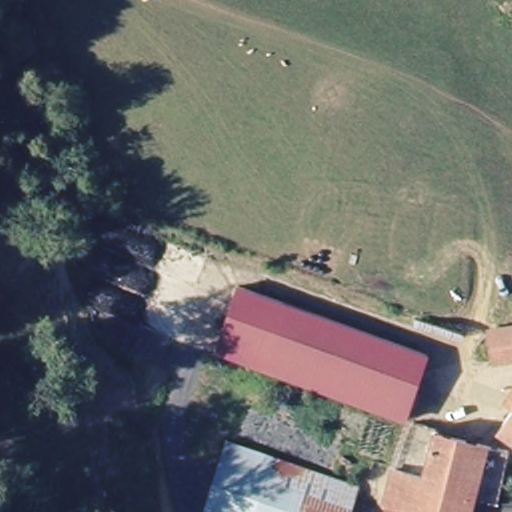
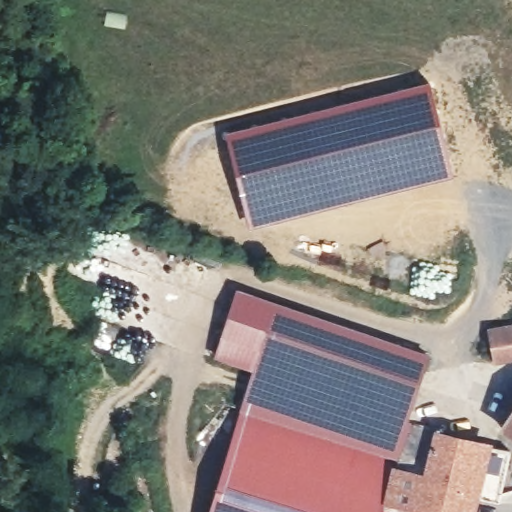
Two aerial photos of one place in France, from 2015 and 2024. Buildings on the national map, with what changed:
new [(429,81),(453,174),(250,226),(224,133),(429,81)]
unchanged [(235,290),(276,302),(259,363),(260,370),(254,367),(216,356),(235,290)]
unchanged [(260,370),(259,363),(276,302),(422,349),(401,415),(260,370)]
unchanged [(512,315),(512,347),(494,349),(492,316),(512,315)]
new [(254,367),(260,370),(401,415),(376,512),(209,512),(254,367)]
unchanged [(429,378),(420,418),(438,422),(436,430),(512,448),(512,465),(508,463),(494,512),(466,512),(385,491),(417,375),(429,378)]
unchanged [(512,409),(512,419),(508,415),(512,409)]
demolished [(361,485),(353,512),(205,512),(228,448),(361,485)]
unchanged [(385,491),(466,512),(380,512),(385,491)]

